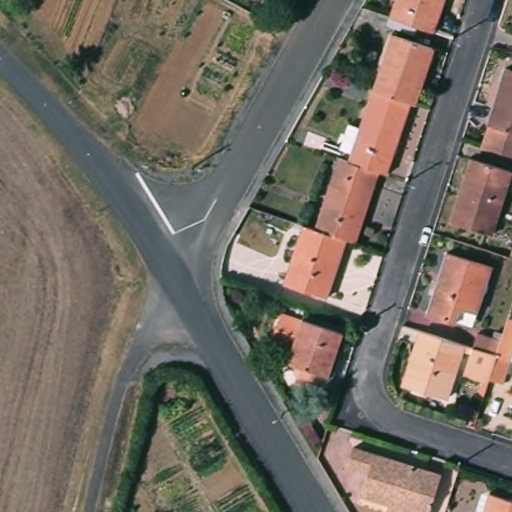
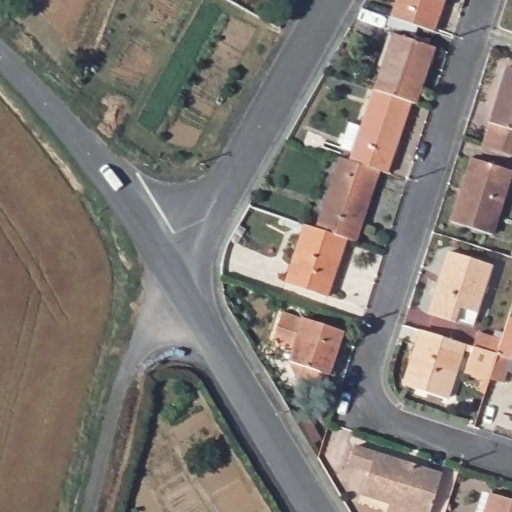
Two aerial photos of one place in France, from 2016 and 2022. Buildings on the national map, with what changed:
unchanged [(443,0),(433,30),(410,22),(390,16),(395,0),(443,0)]
unchanged [(376,90),(395,31),(432,44),(415,101),(411,100),(376,90)]
unchanged [(490,120),(488,120),(505,67),(512,69),(512,152),(483,143),(490,120)]
unchanged [(351,160),(373,89),(376,90),(411,100),(390,171),(381,169),(351,160)]
unchanged [(510,168),(490,232),(448,219),(468,155),(510,168)]
unchanged [(320,227),(342,157),(351,160),(381,169),(359,240),(348,236),(335,231),(320,227)]
unchanged [(326,308),(285,295),(307,224),(320,227),(335,231),(348,236),(326,308)]
unchanged [(459,318),(458,321),(430,312),(448,250),(495,265),(480,311),(476,323),(459,318)]
unchanged [(472,351),(464,349),(449,395),(408,383),(425,328),(476,344),(480,330),(504,337),(510,315),(512,315),(512,359),(505,381),(491,376),(491,377),(466,370),(468,364),(472,351)]
unchanged [(286,376),(290,363),(305,320),(345,332),(331,375),(327,388),(286,376)]
unchanged [(433,477),(435,473),(441,479),(431,512),(403,512),(361,499),(368,476),(346,470),(351,452),(433,477)]
unchanged [(489,495),(512,502),(512,512),(483,512),(489,495)]

